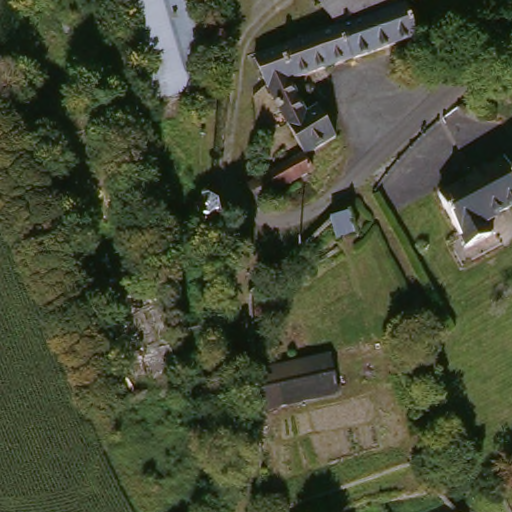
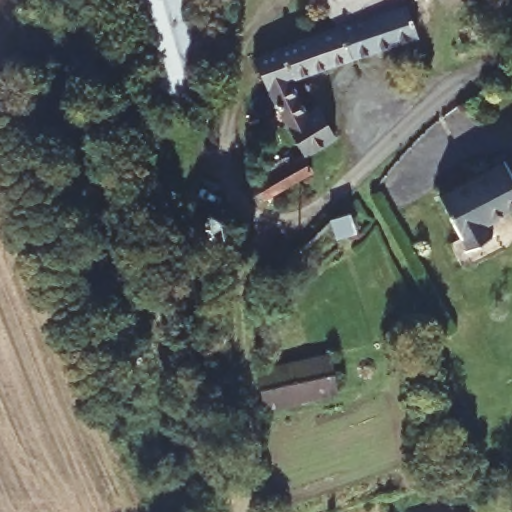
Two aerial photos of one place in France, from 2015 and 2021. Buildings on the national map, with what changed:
unchanged [(222,53),(224,64),(208,71),(212,83),(152,103),(143,68),(151,63),(133,0),(206,0),(218,39),(228,34),(232,48),(222,53)]
unchanged [(323,0),(388,0),(343,27),(323,0)]
unchanged [(413,8),(423,39),(332,70),(297,81),(310,110),(322,105),(341,144),(308,160),(306,156),(272,89),(271,87),(256,58),(413,8)]
unchanged [(316,176),(261,205),(251,186),(306,156),(308,160),(316,176)]
unchanged [(483,220),(491,236),(468,247),(442,193),(510,160),(512,164),(512,206),(483,220)]
unchanged [(352,208),(357,226),(342,231),(336,212),(352,208)]
unchanged [(343,392),(269,408),(259,369),(332,354),(343,392)]
unchanged [(455,497),(469,512),(412,512),(455,497)]

